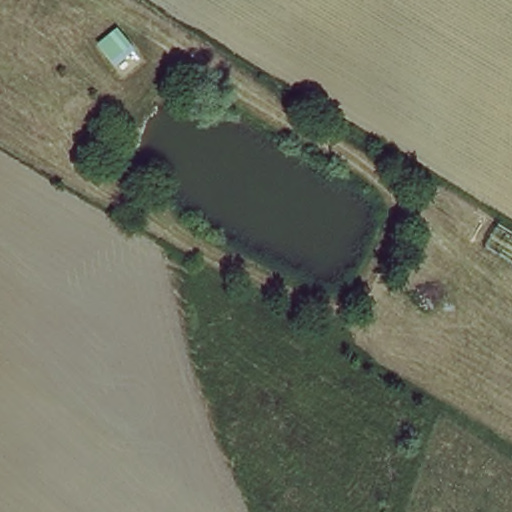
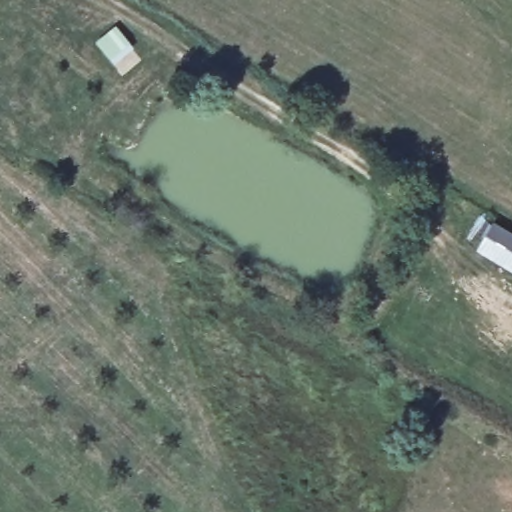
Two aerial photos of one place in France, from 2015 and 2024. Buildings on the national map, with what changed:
unchanged [(135,49),(111,68),(90,39),(117,23),(135,49)]
new [(496,221),(512,231),(512,270),(479,250),(496,221)]

